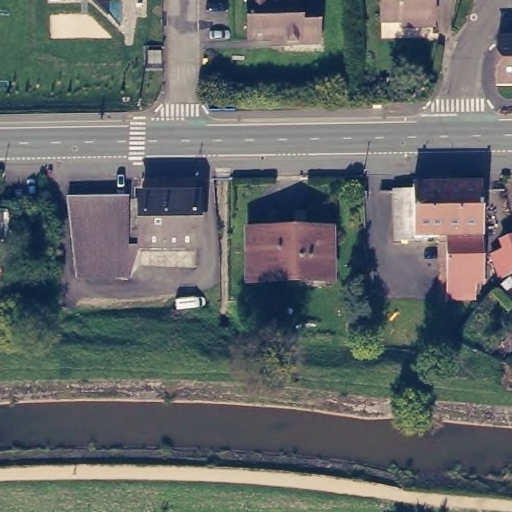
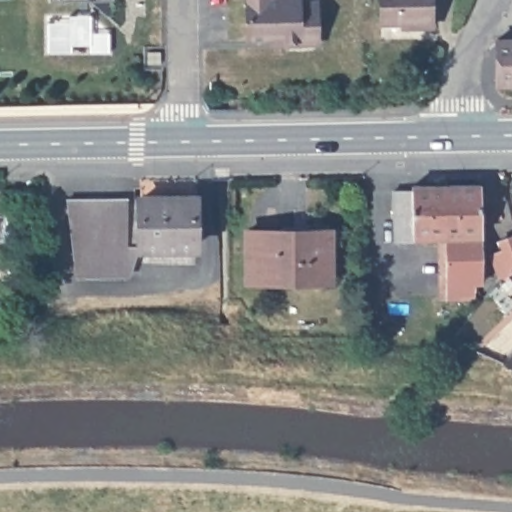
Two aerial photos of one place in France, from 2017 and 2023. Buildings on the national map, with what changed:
unchanged [(50,0),(114,0),(114,1),(50,0)]
unchanged [(280,39),(280,33),(247,34),(246,0),(316,0),(317,37),(280,39)]
unchanged [(422,21),(422,17),(391,17),(391,0),(442,0),(442,22),(422,21)]
unchanged [(512,80),(501,80),(501,35),(512,35),(512,80)]
unchanged [(393,187),(411,187),(411,183),(480,183),(481,280),(477,280),(477,291),(472,291),(472,295),(447,295),(446,239),(449,237),(449,234),(409,234),(393,235),(393,187)]
unchanged [(61,194),(193,195),(194,242),(123,242),(123,271),(76,270),(61,194)]
unchanged [(14,210),(14,233),(0,233),(0,210),(14,210)]
unchanged [(339,229),(340,277),(259,279),(258,231),(339,229)]
unchanged [(503,268),(496,249),(496,246),(507,242),(504,232),(512,230),(512,258),(512,266),(504,269),(503,268)]

